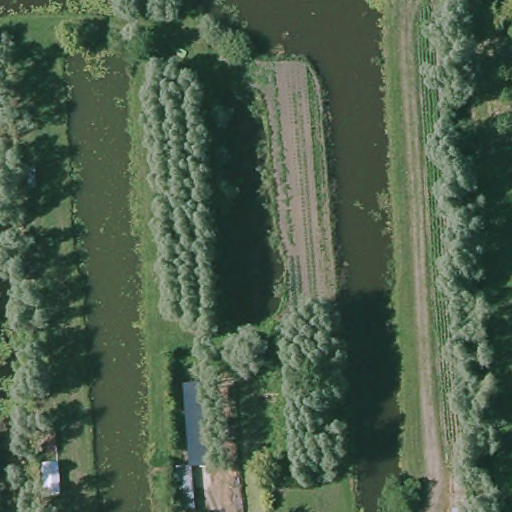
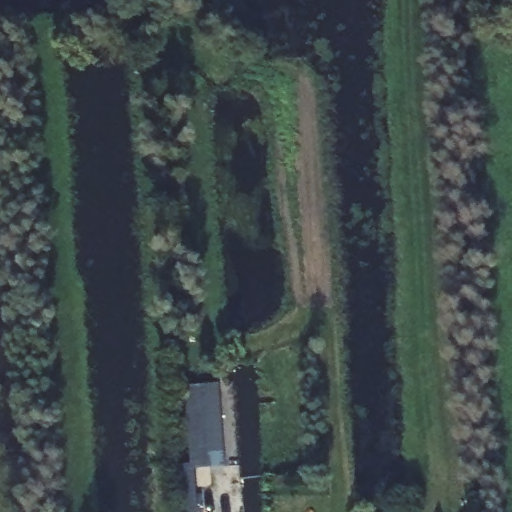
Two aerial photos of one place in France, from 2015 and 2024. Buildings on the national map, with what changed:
unchanged [(203,387),(207,470),(191,471),(188,390),(203,387)]

